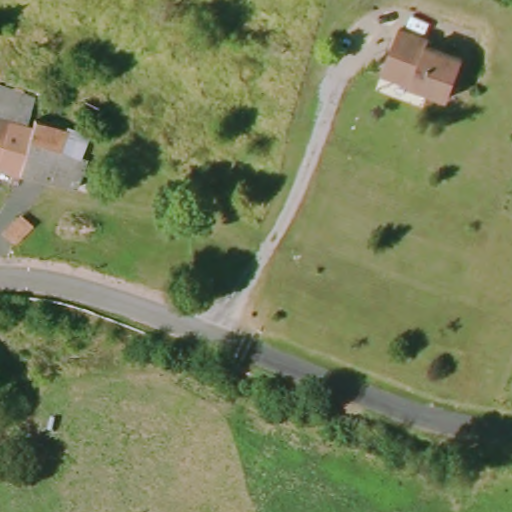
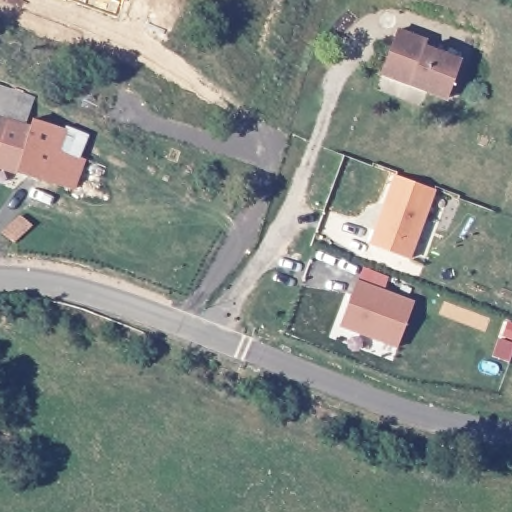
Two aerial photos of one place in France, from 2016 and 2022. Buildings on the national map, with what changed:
unchanged [(419,38),(417,43),(456,57),(443,94),(382,74),(373,71),(381,47),(387,28),(419,38)]
unchanged [(6,114),(0,134),(0,88),(34,99),(29,114),(28,122),(6,114)]
unchanged [(0,134),(6,114),(28,122),(61,135),(53,161),(83,173),(72,194),(0,169),(0,134)]
new [(370,244),(394,175),(437,190),(412,260),(370,244)]
unchanged [(28,246),(24,249),(21,249),(2,258),(0,255),(0,241),(15,230),(28,246)]
new [(341,327),(358,280),(416,300),(397,348),(341,327)]

